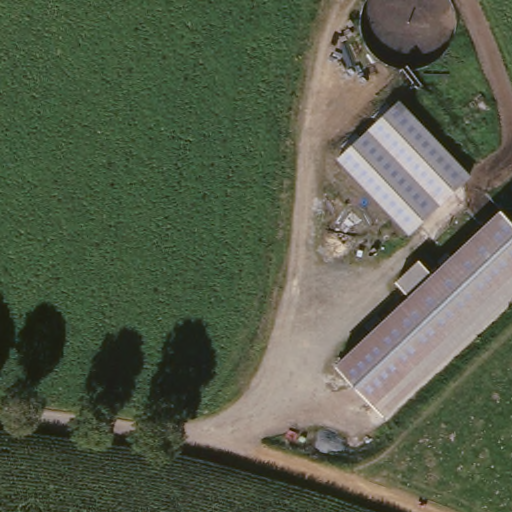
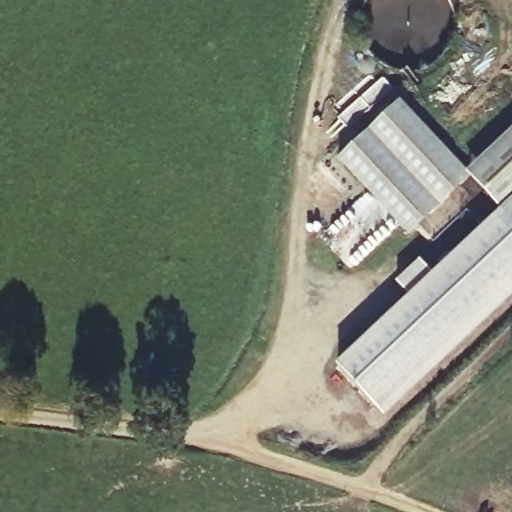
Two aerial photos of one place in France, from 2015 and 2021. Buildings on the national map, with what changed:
unchanged [(337,159),(398,103),(470,178),(408,235),(337,159)]
new [(512,131),(512,220),(502,209),(500,211),(470,178),(466,174),(512,131)]
unchanged [(395,284),(419,261),(433,272),(502,209),(512,220),(512,295),(382,416),(334,367),(408,297),(395,284)]

